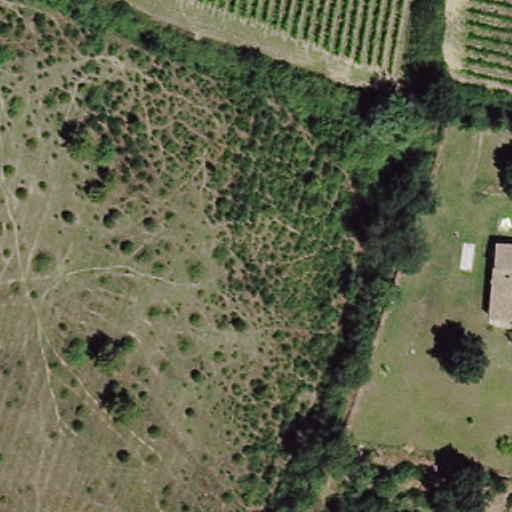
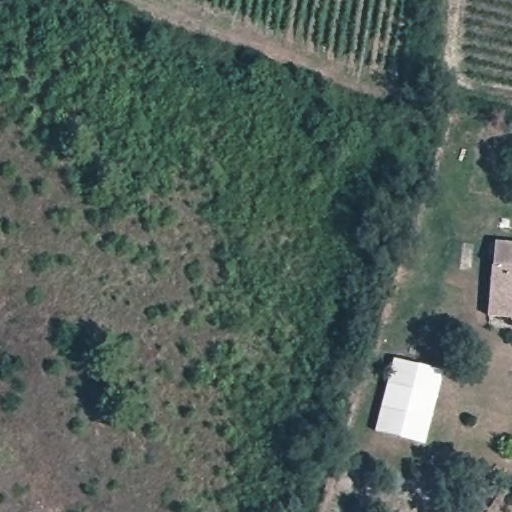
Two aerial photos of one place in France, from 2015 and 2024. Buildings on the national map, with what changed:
unchanged [(501,236),(512,238),(512,319),(487,315),(501,236)]
new [(424,442),(376,428),(394,358),(442,369),(424,442)]

